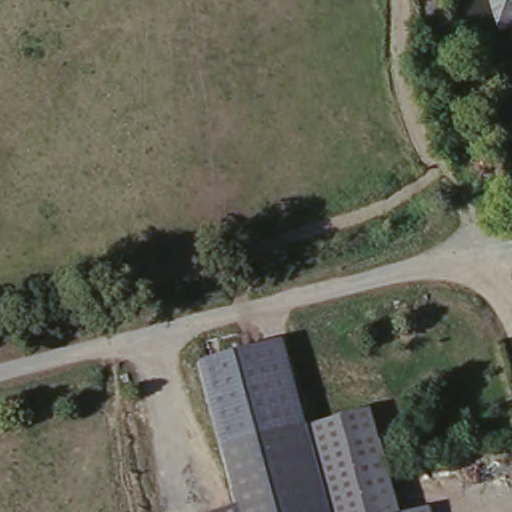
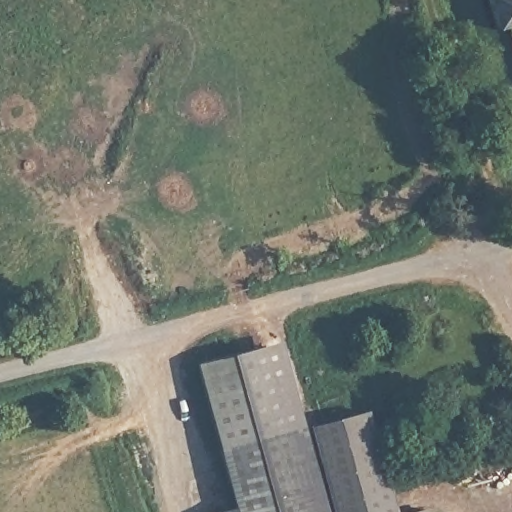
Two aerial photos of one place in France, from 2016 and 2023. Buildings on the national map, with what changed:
unchanged [(497,33),(487,0),(512,0),(512,29),(497,33)]
unchanged [(195,364),(279,341),(303,426),(218,449),(195,364)]
unchanged [(394,512),(212,512),(232,506),(218,449),(367,409),(394,512)]
unchanged [(428,508),(429,512),(407,512),(428,508)]

